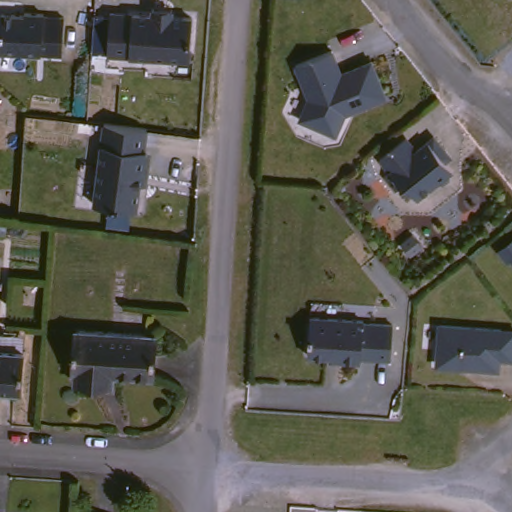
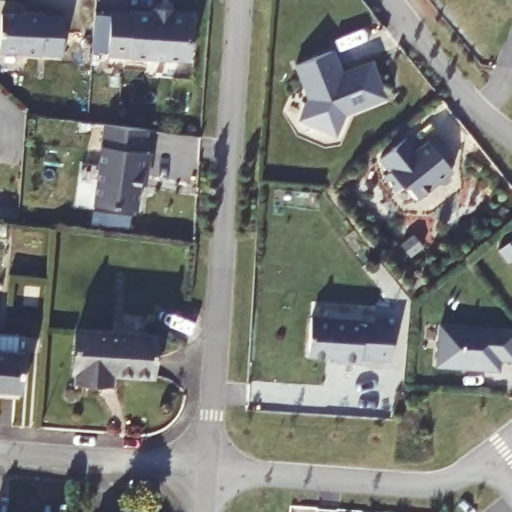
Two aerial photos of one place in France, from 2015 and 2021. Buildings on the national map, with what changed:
unchanged [(202,15),(197,62),(112,56),(119,10),(202,15)]
unchanged [(3,14),(67,14),(64,55),(4,56),(3,14)]
unchanged [(308,115),(320,87),(317,83),(312,85),(303,60),(340,46),(348,70),(378,58),(392,95),(352,110),(344,131),(308,115)]
unchanged [(100,202),(110,121),(153,127),(142,209),(100,202)]
unchanged [(418,200),(409,188),(404,187),(398,192),(387,177),(392,173),(382,160),(408,139),(418,152),(436,137),(448,152),(452,158),(447,162),(454,171),(452,173),(452,179),(443,185),(437,185),(418,200)]
unchanged [(500,249),(512,238),(512,263),(500,249)]
unchanged [(362,356),(362,361),(341,360),(341,356),(310,353),(312,315),(365,319),(365,321),(394,323),(392,358),(362,356)]
unchanged [(512,327),(512,361),(505,360),(503,370),(439,364),(442,325),(512,327)]
unchanged [(158,334),(155,375),(114,371),(113,385),(78,382),(79,368),(72,367),(77,327),(158,334)]
unchanged [(26,394),(0,391),(0,349),(27,351),(26,394)]

